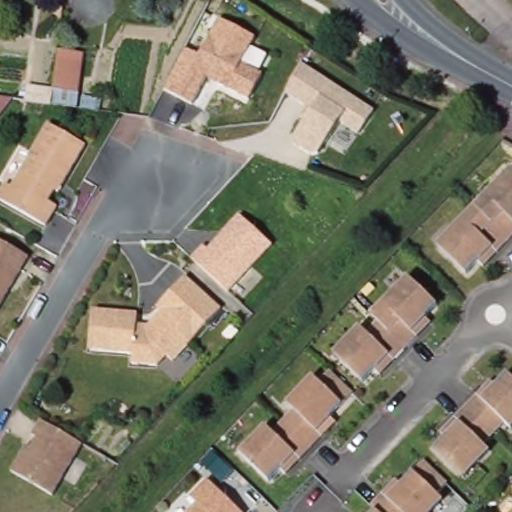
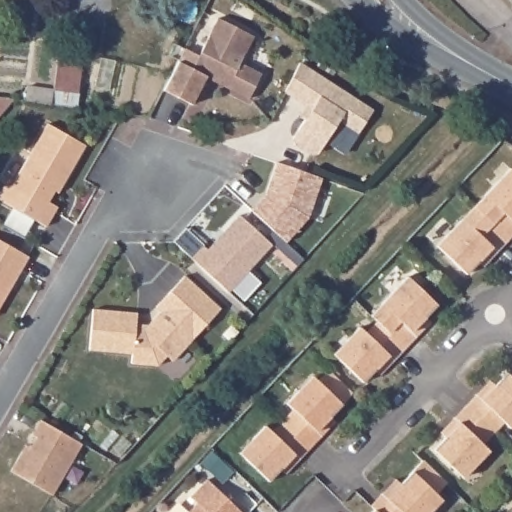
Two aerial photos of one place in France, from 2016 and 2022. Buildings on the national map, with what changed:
unchanged [(257,37),(244,62),(265,75),(252,100),(208,79),(194,105),(166,92),(186,47),(202,54),(221,20),(257,37)]
unchanged [(60,49),(84,52),(79,91),(56,88),(60,49)]
unchanged [(375,111),(361,136),(342,122),(320,157),(294,140),(312,110),(286,94),(301,64),(375,111)]
unchanged [(4,113),(0,113),(0,95),(16,97),(4,113)]
unchanged [(19,186),(52,122),(89,141),(52,201),(63,203),(51,226),(0,196),(0,192),(9,180),(19,186)]
new [(267,189),(278,159),(323,174),(309,214),(287,239),(251,206),(267,189)]
unchanged [(470,274),(439,245),(512,171),(512,228),(470,274)]
unchanged [(275,244),(232,288),(197,254),(208,242),(214,247),(240,214),(275,244)]
unchanged [(0,311),(0,235),(31,255),(0,311)]
unchanged [(224,308),(169,361),(134,360),(134,349),(95,347),(96,307),(139,311),(138,323),(153,322),(163,312),(158,304),(190,273),(224,308)]
unchanged [(438,304),(366,382),(336,356),(409,278),(438,304)]
unchanged [(267,429),(314,377),(328,370),(357,396),(344,405),(271,478),(243,455),(267,429)]
unchanged [(512,379),(512,429),(464,478),(435,451),(509,376),(512,379)]
unchanged [(84,440),(55,494),(11,472),(26,444),(34,446),(45,418),(84,440)]
unchanged [(444,499),(432,512),(370,512),(424,464),(447,483),(444,499)]
unchanged [(190,512),(198,503),(189,499),(209,481),(241,512),(190,512)]

